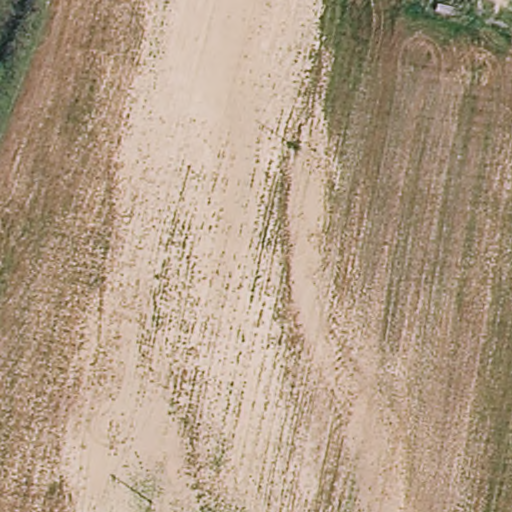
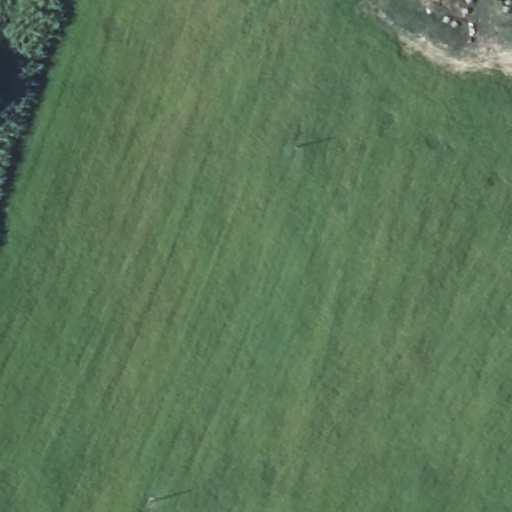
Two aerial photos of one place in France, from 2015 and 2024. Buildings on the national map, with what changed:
[]

